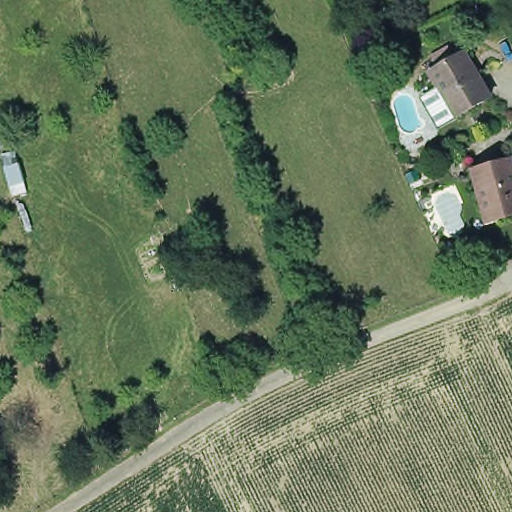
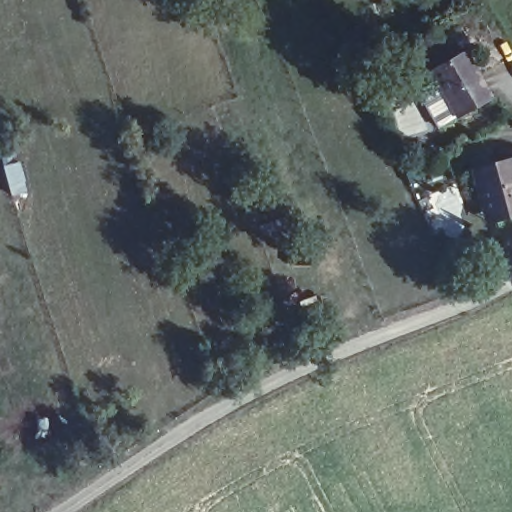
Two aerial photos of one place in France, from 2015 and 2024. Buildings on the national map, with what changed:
unchanged [(433,68),(440,66),(466,55),(477,81),(481,79),(491,102),(465,113),(453,118),(445,121),(431,88),(440,84),(433,68)]
unchanged [(481,203),(471,165),(492,160),(507,155),(512,170),(506,172),(508,179),(512,179),(512,208),(493,214),(485,216),(481,203)]
unchanged [(26,184),(10,189),(0,167),(17,163),(26,184)]

